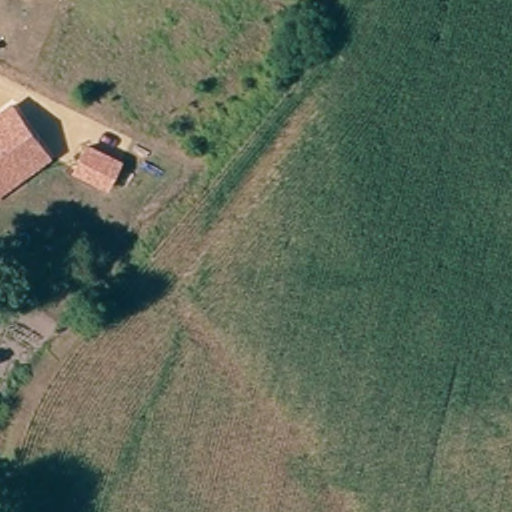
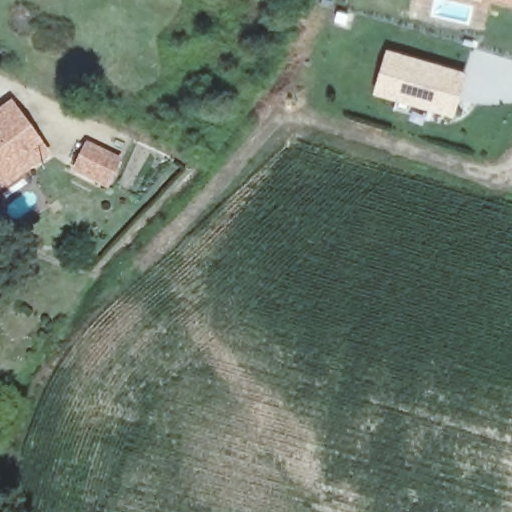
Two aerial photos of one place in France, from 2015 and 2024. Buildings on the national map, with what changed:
new [(512,0),(512,8),(479,0),(512,0)]
new [(467,72),(455,118),(373,95),(388,50),(467,72)]
unchanged [(0,198),(0,112),(13,102),(54,158),(0,198)]
unchanged [(125,161),(110,191),(72,175),(89,144),(125,161)]

